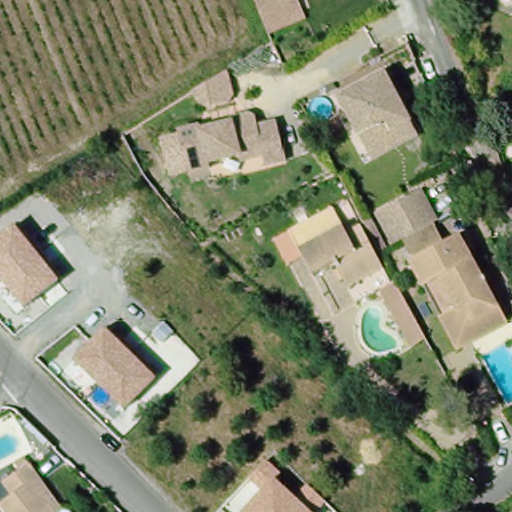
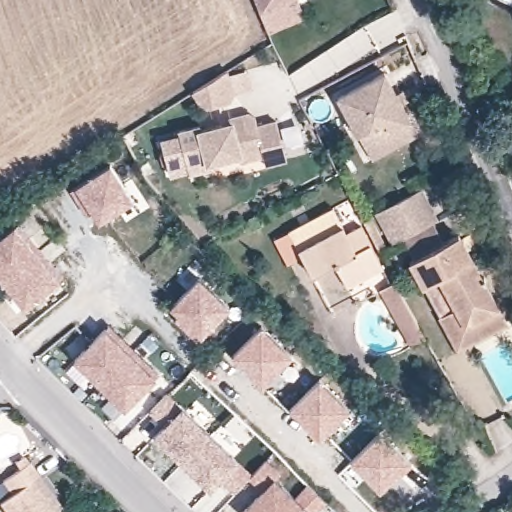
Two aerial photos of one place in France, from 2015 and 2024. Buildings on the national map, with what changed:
unchanged [(268,37),(251,0),(292,0),(301,22),(268,37)]
unchanged [(394,137),(386,120),(355,135),(337,95),(387,70),(420,120),(394,137)]
unchanged [(224,76),(234,96),(201,114),(190,94),(224,76)]
unchanged [(160,142),(158,135),(176,131),(194,129),(246,115),(250,126),(273,121),(281,157),(238,165),(236,158),(208,165),(208,170),(187,176),(178,137),(160,142)]
new [(136,201),(98,225),(93,215),(88,219),(71,191),(75,186),(111,165),(136,201)]
unchanged [(366,220),(374,216),(372,212),(420,190),(434,226),(390,247),(389,245),(381,249),(366,220)]
unchanged [(299,252),(301,257),(289,265),(276,239),(330,207),(342,230),(299,252)]
unchanged [(0,279),(0,237),(16,225),(59,281),(24,307),(0,279)]
unchanged [(346,236),(355,232),(379,273),(344,290),(333,268),(310,278),(299,252),(342,230),(346,236)]
unchanged [(459,240),(499,310),(466,328),(442,281),(423,290),(410,267),(414,265),(435,254),(459,240)]
new [(232,307),(202,337),(199,342),(176,322),(181,317),(171,308),(197,277),(232,307)]
unchanged [(508,327),(459,352),(423,290),(442,281),(466,328),(499,310),(508,327)]
unchanged [(411,350),(379,289),(396,282),(428,341),(411,350)]
new [(293,352),(264,385),(229,355),(260,325),(293,352)]
unchanged [(107,328),(156,377),(125,409),(74,360),(107,328)]
new [(352,411),(320,440),(289,408),(319,380),(352,411)]
new [(182,406),(237,461),(252,475),(249,477),(235,495),(222,482),(212,492),(153,437),(163,426),(150,413),(168,393),(182,406)]
new [(411,461),(379,490),(349,460),(379,431),(411,461)]
unchanged [(264,491),(249,477),(268,459),(284,473),(277,480),(295,496),(308,483),(326,500),(314,512),(244,512),(264,491)]
unchanged [(2,503),(12,496),(3,482),(33,463),(44,478),(36,485),(56,512),(8,512),(2,503)]

